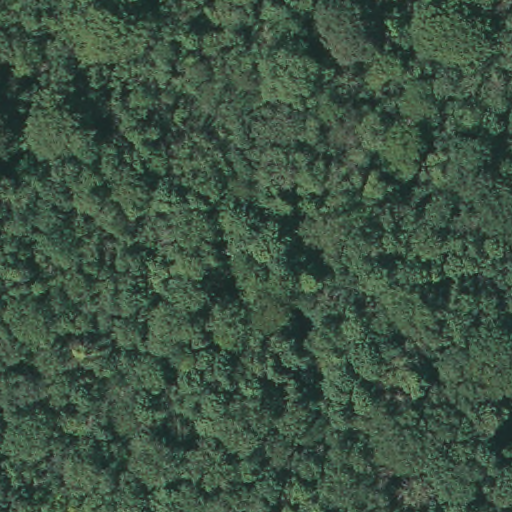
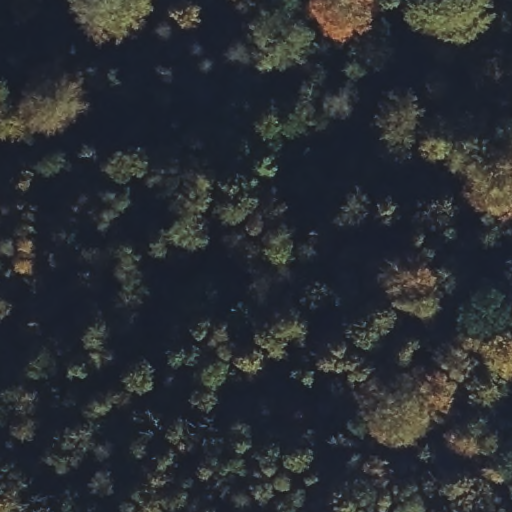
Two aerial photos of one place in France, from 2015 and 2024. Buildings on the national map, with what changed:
unchanged [(120,303),(100,328),(75,307),(95,288),(120,303)]

